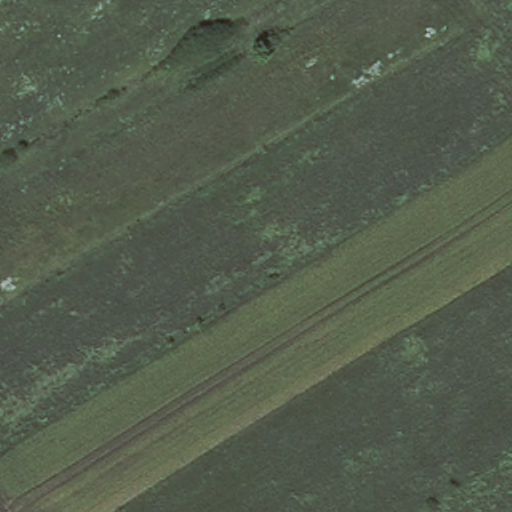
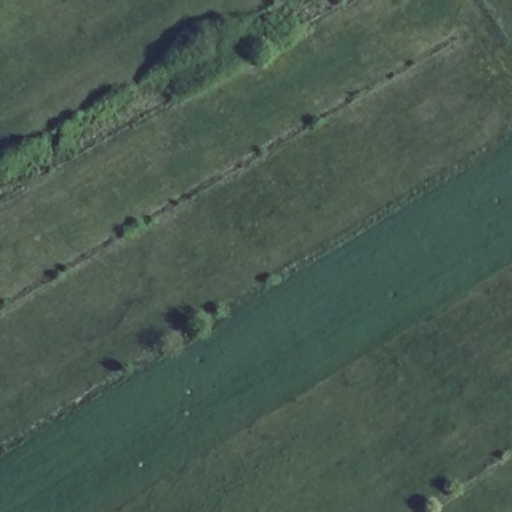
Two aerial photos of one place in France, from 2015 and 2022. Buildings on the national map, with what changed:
[]

